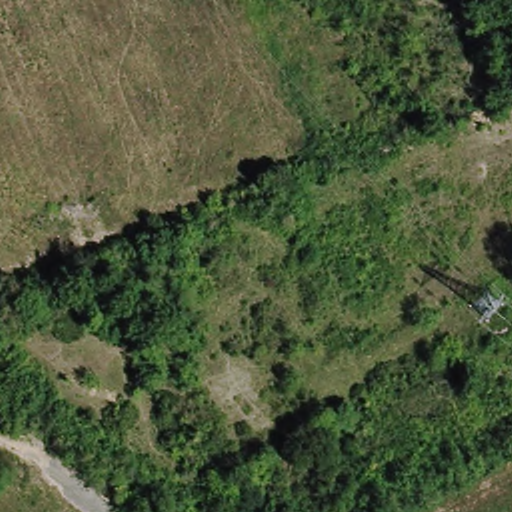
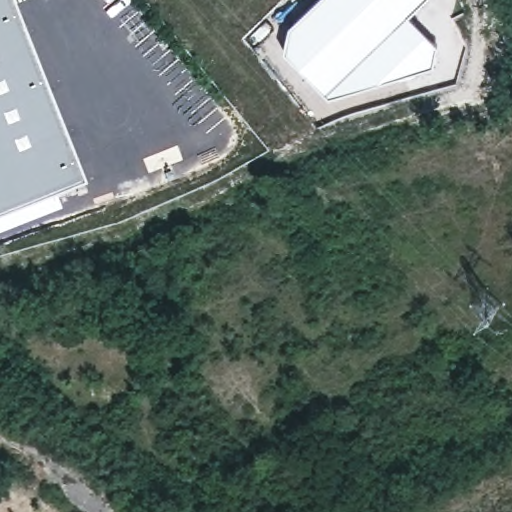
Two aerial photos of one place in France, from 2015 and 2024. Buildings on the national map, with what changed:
new [(0,214),(0,0),(11,0),(84,182),(0,214)]
new [(315,0),(422,0),(409,14),(435,45),(432,66),(327,98),(282,51),(288,26),(315,0)]

